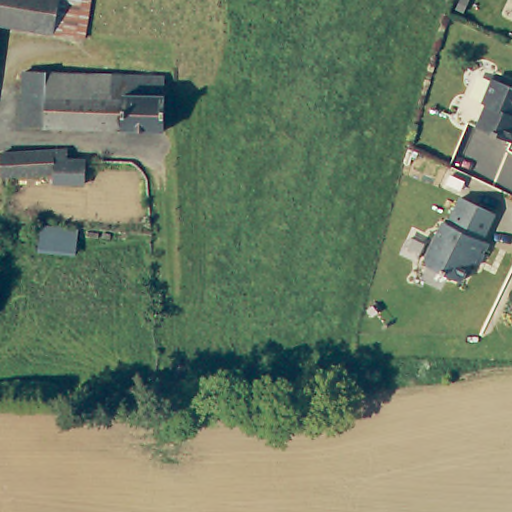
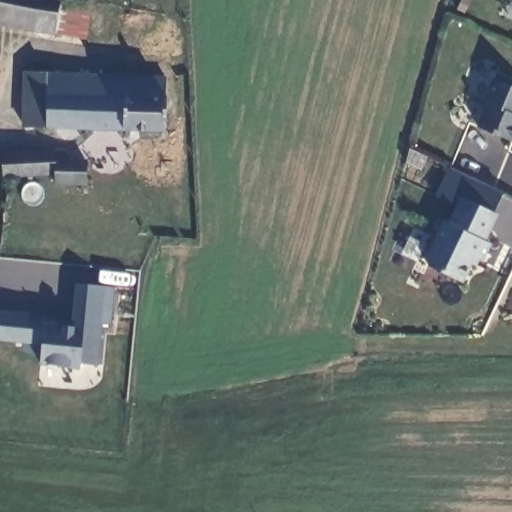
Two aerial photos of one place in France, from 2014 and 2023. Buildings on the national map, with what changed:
unchanged [(54,33),(0,28),(0,0),(56,0),(54,33)]
unchanged [(83,35),(54,33),(56,0),(86,0),(83,35)]
unchanged [(24,74),(164,75),(164,96),(167,98),(165,132),(22,129),(24,74)]
unchanged [(482,99),(492,77),(512,87),(512,135),(510,140),(476,124),(487,102),(482,99)]
unchanged [(91,183),(61,183),(60,173),(13,172),(1,172),(1,149),(60,149),(60,157),(91,157),(91,183)]
unchanged [(459,195),(493,212),(482,238),(487,242),(480,257),(472,253),(460,276),(428,261),(424,256),(441,221),(446,223),(459,195)]
demolished [(77,253),(40,248),(45,226),(80,231),(77,253)]
new [(109,321),(102,322),(97,364),(81,363),(79,368),(67,367),(67,364),(47,363),(47,365),(41,365),(43,342),(0,339),(0,309),(61,315),(61,322),(75,323),(79,282),(112,285),(109,321)]

